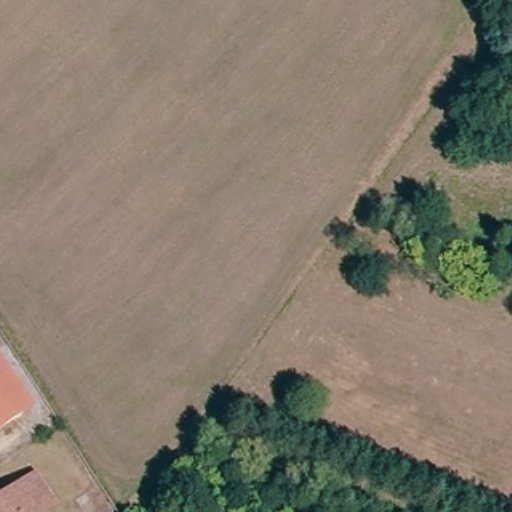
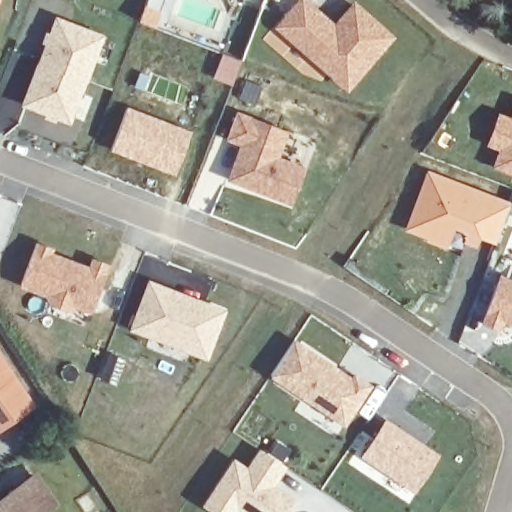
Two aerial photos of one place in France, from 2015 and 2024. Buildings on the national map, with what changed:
new [(355,2),(396,38),(347,92),(274,28),(298,0),(305,0),(333,24),(355,2)]
new [(106,35),(71,125),(57,120),(56,124),(44,120),(45,116),(20,107),(44,46),(40,44),(45,31),(49,33),(55,18),(106,35)]
new [(222,53),(242,61),(232,86),(212,78),(222,53)]
new [(126,105),(192,131),(174,176),(107,151),(126,105)]
new [(510,116),(512,110),(512,176),(490,167),(496,151),(483,146),(497,111),(510,116)]
new [(287,133),(277,160),(303,169),(291,203),(229,181),(242,145),(227,140),(237,114),(287,133)]
new [(512,207),(497,242),(437,219),(431,237),(408,227),(428,175),(512,207)]
new [(52,250),(50,254),(90,270),(93,259),(108,265),(91,312),(75,306),(66,310),(51,304),(46,295),(21,287),(37,245),(52,250)]
new [(507,276),(508,274),(509,275),(512,275),(512,328),(503,324),(500,332),(480,323),(499,273),(507,276)]
new [(226,310),(207,360),(129,331),(147,280),(226,310)]
new [(351,377),(355,372),(373,385),(345,427),(270,377),(295,340),(351,377)]
unchanged [(36,414),(1,436),(0,435),(0,360),(36,414)]
new [(384,418),(438,454),(413,492),(396,483),(357,457),(384,418)]
new [(247,467),(260,448),(287,467),(274,486),(296,501),(288,512),(209,512),(200,506),(232,458),(247,467)]
unchanged [(13,501),(40,482),(60,509),(55,512),(0,512),(0,510),(13,501)]

